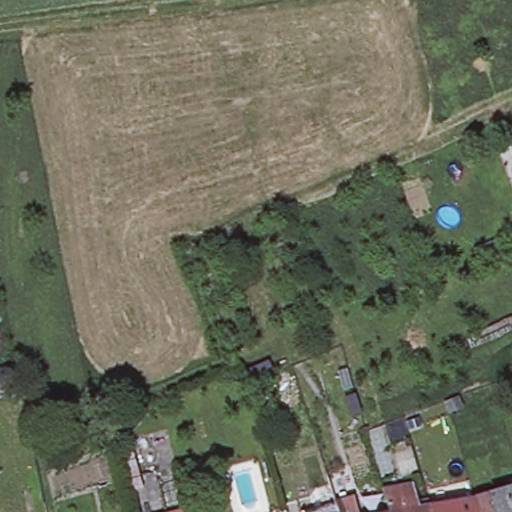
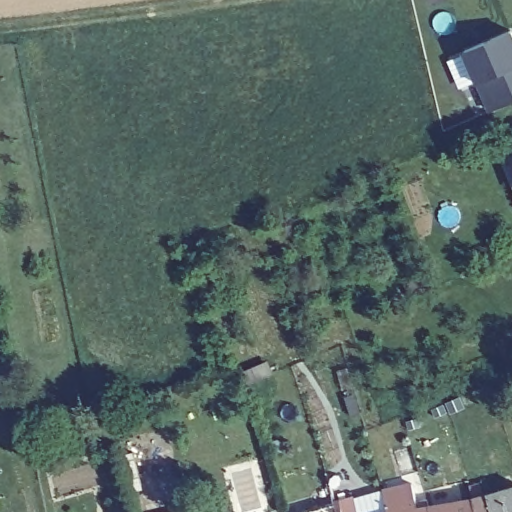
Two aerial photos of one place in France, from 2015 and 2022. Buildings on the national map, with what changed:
new [(477,84),(462,50),(512,29),(512,101),(489,111),(477,84)]
unchanged [(411,487),(415,505),(426,502),(428,510),(429,512),(386,512),(382,494),(411,487)]
unchanged [(512,490),(512,512),(473,512),(469,500),(471,500),(512,490)]
unchanged [(356,512),(338,512),(336,504),(352,500),(356,512)]
unchanged [(473,512),(429,512),(428,510),(469,500),(473,512)]
unchanged [(203,512),(162,512),(201,503),(203,512)]
unchanged [(336,504),(338,512),(306,512),(332,505),(336,504)]

